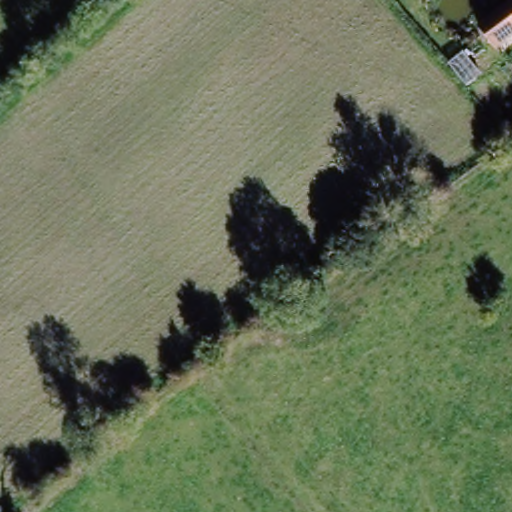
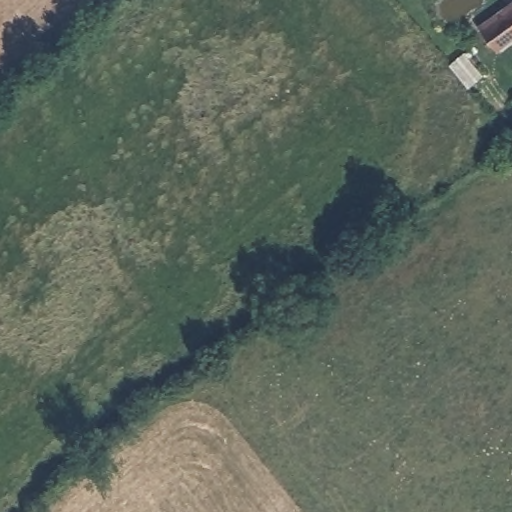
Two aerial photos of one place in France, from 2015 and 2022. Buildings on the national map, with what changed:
unchanged [(512,43),(509,46),(484,32),(512,9),(512,43)]

